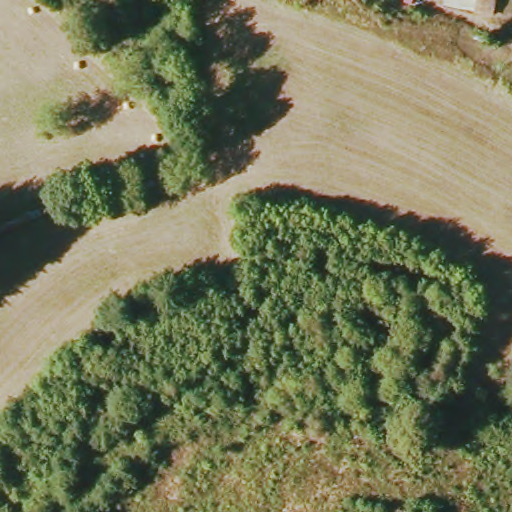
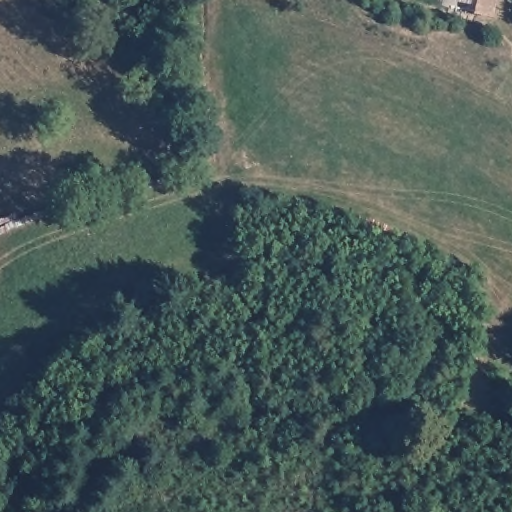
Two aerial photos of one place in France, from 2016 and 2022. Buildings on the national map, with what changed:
unchanged [(485,15),(486,11),(462,0),(501,0),(500,20),(485,15)]

